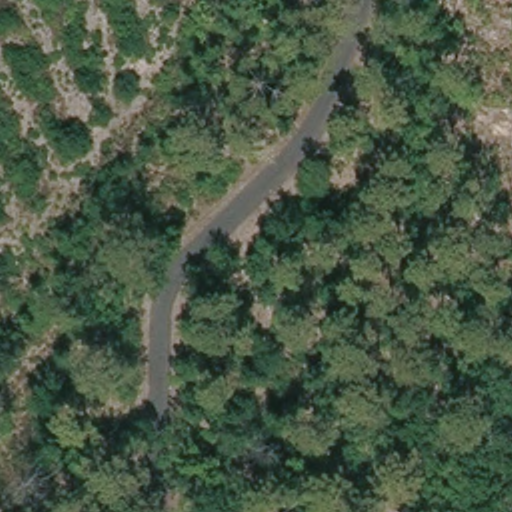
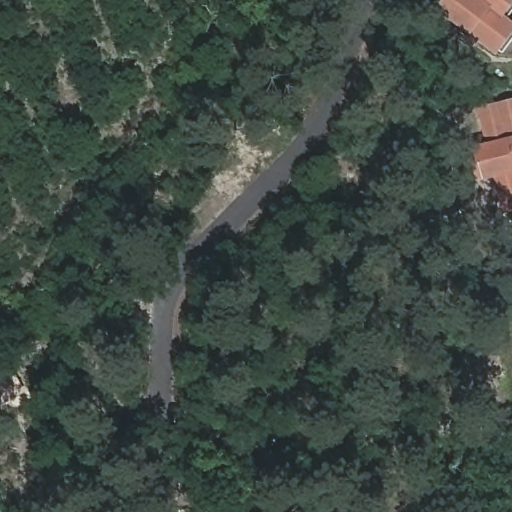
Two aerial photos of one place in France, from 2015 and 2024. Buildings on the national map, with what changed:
new [(512,21),(512,32),(495,54),(471,36),(438,9),(446,0),(512,0),(512,6),(505,15),(512,21)]
new [(495,176),(482,179),(472,180),(463,148),(475,145),(487,142),(477,106),(512,98),(512,210),(502,213),(495,176)]
new [(11,368),(25,392),(0,407),(0,375),(11,368)]

